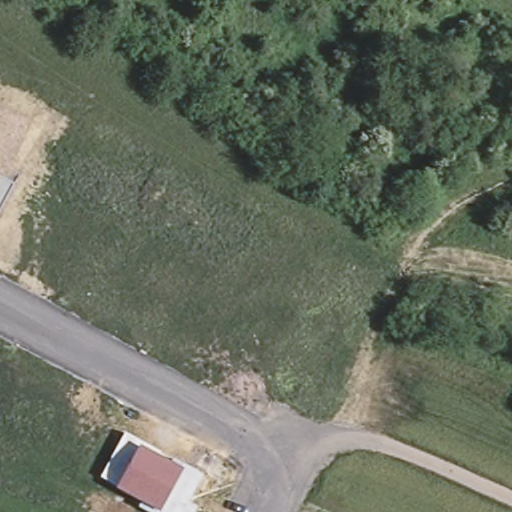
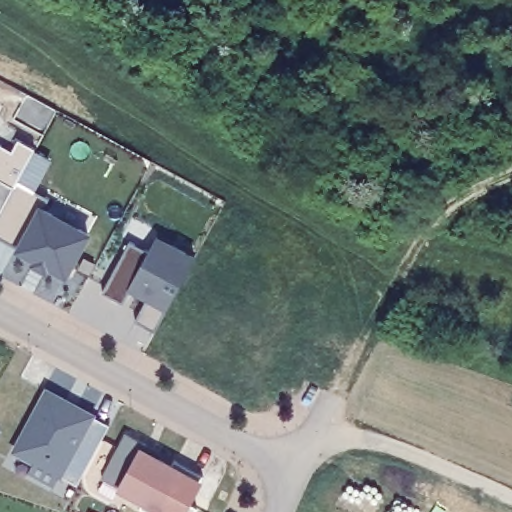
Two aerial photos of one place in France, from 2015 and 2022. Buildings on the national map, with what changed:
new [(17,143),(34,150),(13,184),(0,177),(0,149),(12,154),(17,143)]
unchanged [(0,208),(0,177),(13,184),(0,208)]
new [(12,245),(0,239),(0,208),(13,184),(37,199),(12,245)]
new [(89,237),(65,282),(49,274),(47,278),(30,269),(32,266),(14,256),(37,208),(89,237)]
new [(196,254),(167,309),(155,330),(136,320),(147,299),(130,289),(123,302),(102,291),(130,239),(149,248),(157,233),(196,254)]
new [(97,417),(95,420),(110,427),(77,487),(10,454),(45,389),(97,417)]
unchanged [(142,501),(115,488),(117,484),(100,477),(125,432),(161,452),(159,455),(172,462),(173,458),(204,475),(188,501),(197,507),(194,512),(149,512),(138,506),(142,501)]

